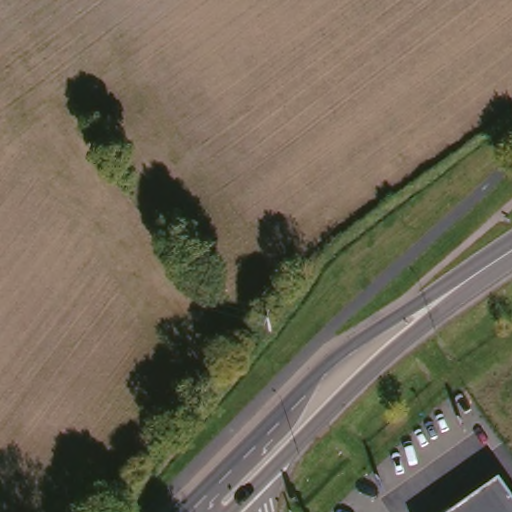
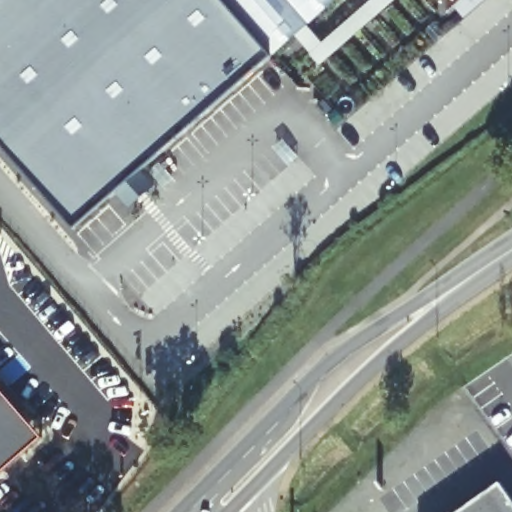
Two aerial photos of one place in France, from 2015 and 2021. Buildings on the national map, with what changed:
new [(74,229),(0,145),(0,0),(339,0),(271,58),(74,229)]
new [(0,468),(0,393),(37,436),(0,468)]
unchanged [(500,484),(512,501),(512,512),(459,512),(500,484)]

